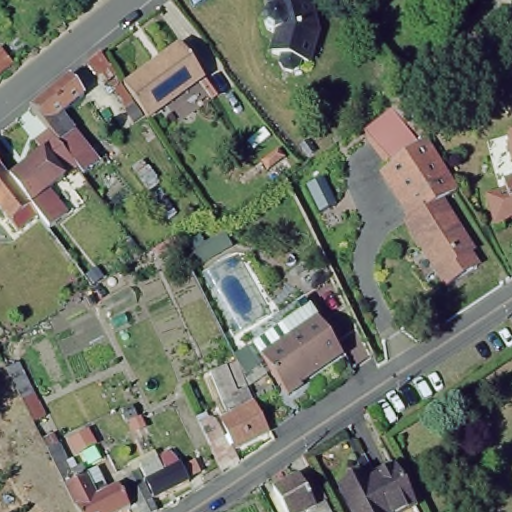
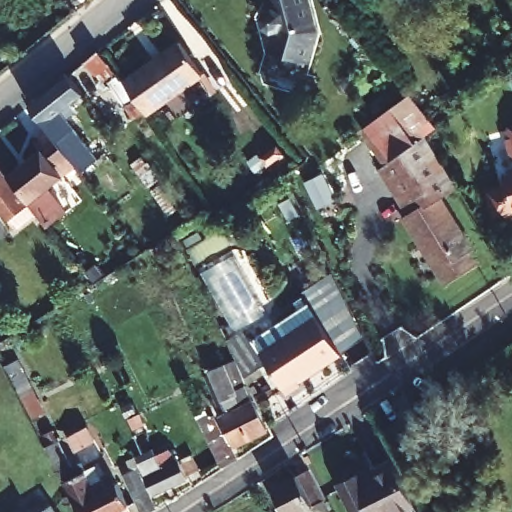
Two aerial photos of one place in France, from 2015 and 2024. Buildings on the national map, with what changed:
unchanged [(311,64),(269,52),(275,29),(270,0),(315,0),(320,30),(311,64)]
unchanged [(0,70),(0,42),(14,59),(0,70)]
unchanged [(200,72),(145,113),(121,82),(177,42),(200,72)]
unchanged [(110,67),(97,76),(88,63),(101,53),(110,67)]
unchanged [(35,142),(50,133),(32,107),(67,80),(80,101),(62,114),(81,143),(96,166),(80,178),(75,171),(45,191),(63,219),(48,229),(37,215),(10,178),(42,153),(35,142)]
unchanged [(420,132),(381,160),(364,133),(411,99),(432,123),(420,132)]
unchanged [(508,159),(502,137),(506,137),(504,128),(512,126),(512,158),(508,159)]
unchanged [(381,160),(420,132),(452,181),(435,192),(407,211),(376,164),(381,160)]
unchanged [(37,215),(17,230),(0,207),(0,164),(10,178),(37,215)]
unchanged [(485,191),(500,187),(498,178),(512,175),(512,208),(511,208),(511,212),(491,217),(485,191)]
unchanged [(468,243),(465,246),(472,258),(441,280),(400,215),(407,211),(435,192),(468,243)]
unchanged [(272,345),(317,316),(340,350),(298,377),(300,380),(292,385),(285,390),(260,352),(272,345)]
unchanged [(221,415),(232,410),(226,397),(224,398),(208,368),(233,357),(266,424),(235,441),(221,415)]
unchanged [(221,463),(200,422),(195,412),(207,407),(235,455),(221,463)]
unchanged [(85,467),(96,490),(117,480),(127,501),(106,512),(82,512),(46,445),(57,439),(75,472),(85,467)]
unchanged [(348,479),(368,468),(372,476),(400,461),(419,500),(393,512),(363,512),(348,479)]
unchanged [(156,501),(149,486),(181,468),(189,485),(156,501)]
unchanged [(310,508),(302,512),(285,512),(273,489),(312,468),(328,499),(325,501),(330,512),(312,512),(310,508)]
unchanged [(138,510),(125,483),(139,476),(153,502),(138,510)]

